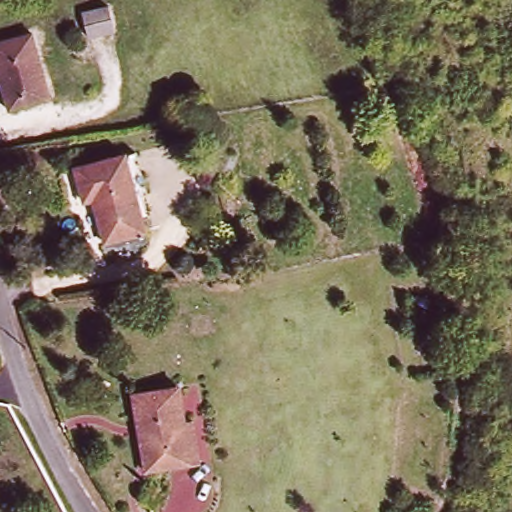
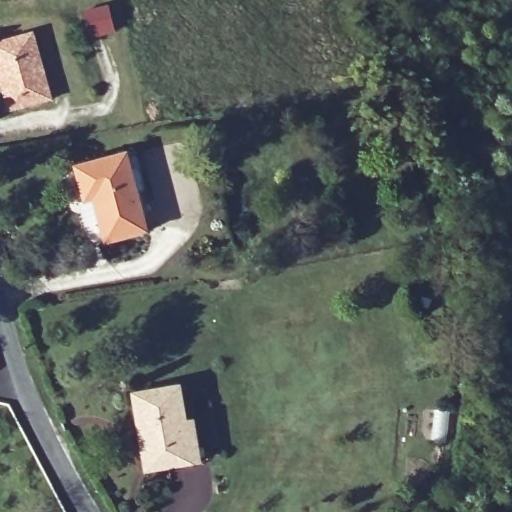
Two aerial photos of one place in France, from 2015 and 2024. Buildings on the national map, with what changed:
unchanged [(101,29),(75,33),(71,5),(96,0),(101,29)]
unchanged [(10,113),(0,80),(0,45),(34,36),(53,101),(10,113)]
unchanged [(139,155),(146,200),(134,202),(141,244),(99,249),(91,205),(79,207),(73,168),(139,155)]
unchanged [(179,393),(187,427),(192,427),(201,468),(147,476),(134,401),(179,393)]

